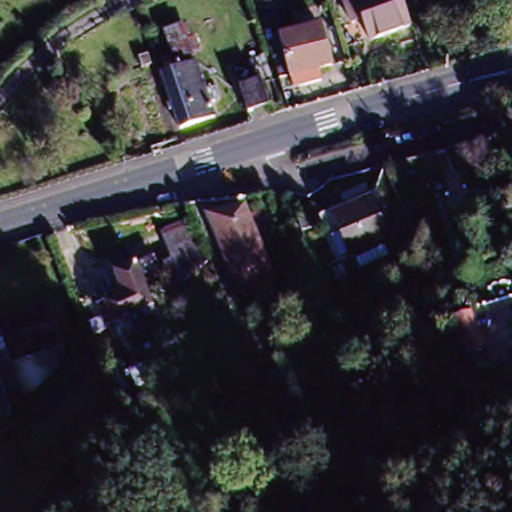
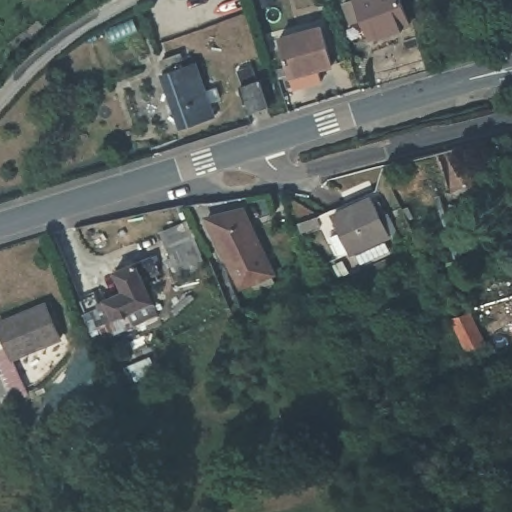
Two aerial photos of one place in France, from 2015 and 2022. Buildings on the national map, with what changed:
unchanged [(370,36),(363,18),(355,20),(348,0),(404,0),(412,21),(370,36)]
unchanged [(326,24),(339,66),(295,83),(281,38),(326,24)]
unchanged [(181,126),(158,62),(171,57),(176,69),(197,62),(206,87),(216,84),(220,95),(210,99),(214,114),(181,126)]
unchanged [(269,104),(245,111),(237,84),(260,77),(269,104)]
unchanged [(328,233),(338,228),(332,209),(372,194),(378,208),(382,207),(392,227),(347,247),(344,241),(334,246),(328,233)]
unchanged [(247,217),(273,276),(236,292),(225,268),(249,259),(236,222),(247,217)]
unchanged [(249,259),(225,268),(210,231),(236,222),(249,259)]
unchanged [(87,291),(92,303),(122,287),(113,270),(152,248),(161,265),(145,274),(164,308),(137,324),(128,310),(84,332),(72,298),(87,291)]
unchanged [(343,253),(351,270),(330,278),(322,261),(343,253)]
unchanged [(0,372),(0,340),(4,339),(0,329),(0,327),(50,306),(60,333),(62,342),(14,363),(27,398),(13,404),(0,410),(0,378),(2,377),(0,372)]
unchanged [(465,311),(481,345),(467,353),(450,318),(465,311)]

